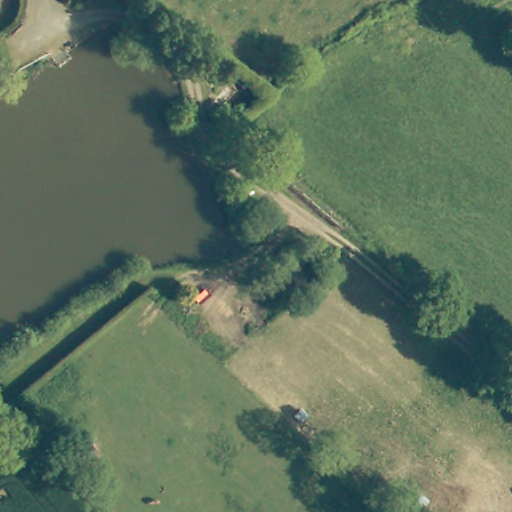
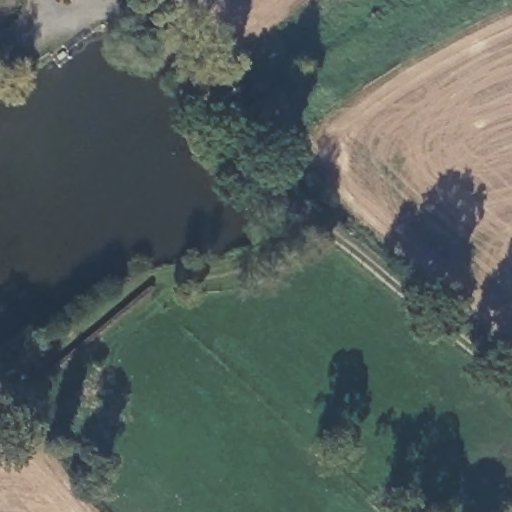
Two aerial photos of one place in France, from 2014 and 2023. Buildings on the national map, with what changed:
unchanged [(69,6),(62,0),(76,0),(69,6)]
unchanged [(102,5),(93,0),(106,0),(102,5)]

